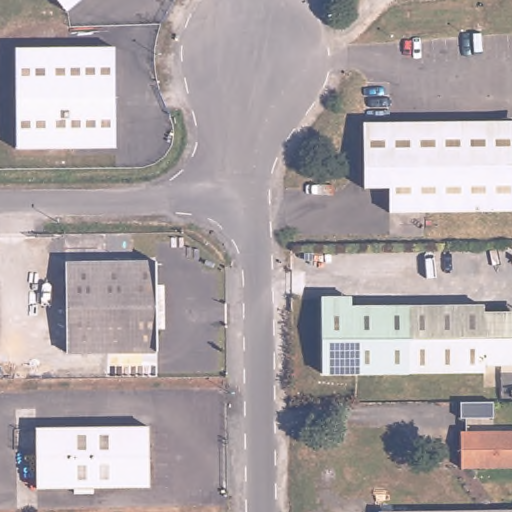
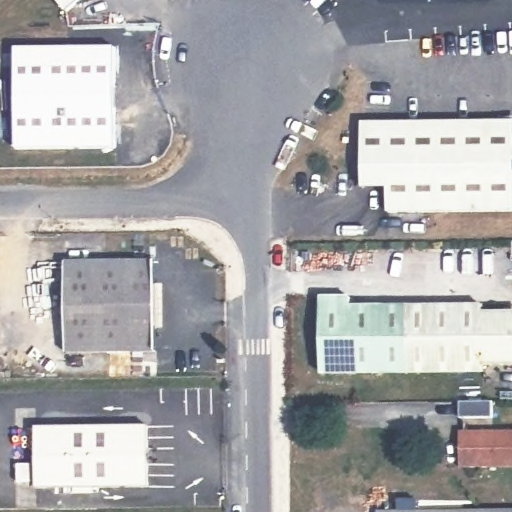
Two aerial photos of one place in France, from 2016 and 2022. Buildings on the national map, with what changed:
unchanged [(55,0),(83,0),(66,14),(55,0)]
unchanged [(118,45),(121,145),(21,148),(18,48),(118,45)]
unchanged [(512,204),(393,205),(393,182),(366,183),(368,114),(512,113),(512,204)]
unchanged [(160,258),(161,348),(69,351),(69,260),(160,258)]
unchanged [(512,308),(512,355),(486,356),(486,363),(324,364),(324,291),(346,291),(354,291),(354,301),(486,300),(486,308),(512,308)]
unchanged [(492,404),(492,420),(459,421),(459,404),(492,404)]
unchanged [(152,424),(153,485),(39,486),(40,424),(152,424)]
unchanged [(512,470),(460,470),(460,442),(459,434),(512,434),(512,470)]
unchanged [(512,508),(512,512),(393,512),(512,508)]

